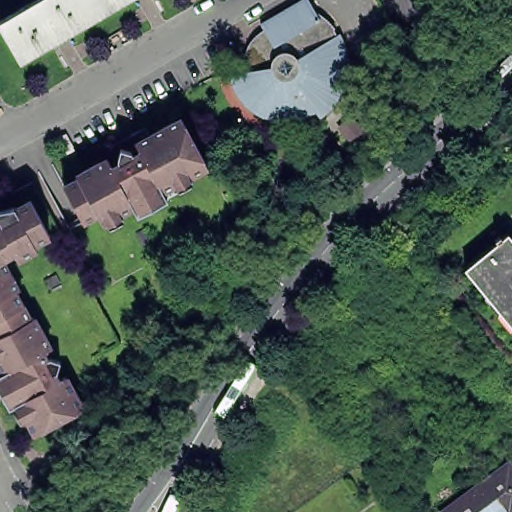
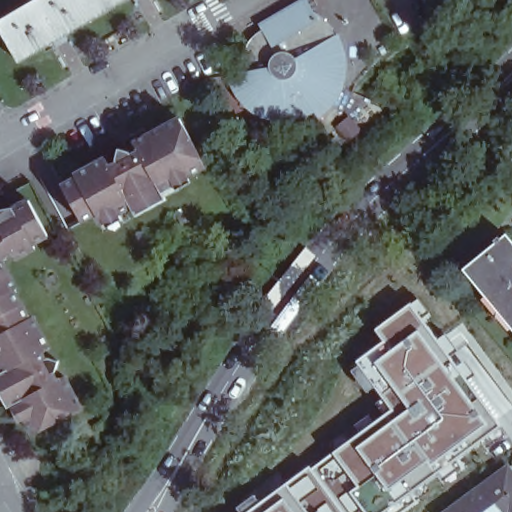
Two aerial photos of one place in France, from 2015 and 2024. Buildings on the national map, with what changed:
unchanged [(93,22),(70,35),(73,40),(61,47),(58,42),(23,62),(0,23),(40,0),(80,0),(93,22)]
unchanged [(93,22),(80,0),(130,0),(93,22)]
unchanged [(140,1),(140,0),(141,0),(140,1)]
unchanged [(319,12),(324,15),(328,18),(331,21),(335,25),(338,29),(331,33),(335,39),(342,35),(344,39),(346,44),(348,49),(350,59),(351,64),(351,70),(350,75),(349,80),(348,85),(346,90),(344,95),(341,99),(338,103),(335,107),(331,111),(327,114),(323,118),(319,111),(314,114),(311,116),(306,118),(301,119),(292,120),(288,120),(283,120),(273,118),(269,117),(264,115),(256,110),(249,104),(246,100),(238,88),(236,79),(234,75),(248,72),(247,68),(247,63),(248,58),(248,54),(251,49),(253,45),(264,52),(274,42),(264,25),(308,0),(312,0),(319,12)]
unchanged [(193,142),(206,166),(161,191),(166,200),(136,216),(131,207),(101,223),(96,214),(81,222),(63,187),(77,179),(75,175),(106,159),(111,168),(118,164),(115,160),(118,149),(133,141),(130,136),(144,128),(149,136),(180,119),(193,142)]
unchanged [(0,219),(0,218),(2,218),(0,214),(0,211),(18,207),(19,209),(34,200),(53,236),(38,244),(40,248),(21,259),(18,252),(5,258),(22,289),(18,291),(34,319),(38,317),(54,348),(46,352),(50,359),(53,358),(64,361),(60,372),(58,373),(61,380),(69,376),(83,401),(87,409),(39,435),(22,403),(6,373),(0,362),(0,231),(5,229),(0,219)]
unchanged [(512,333),(485,300),(463,274),(496,248),(494,245),(498,242),(500,244),(506,239),(512,246),(512,334),(512,333)]
new [(391,512),(234,512),(233,509),(251,497),(258,506),(388,408),(361,360),(383,342),(378,331),(414,305),(504,434),(391,512)]
unchanged [(502,473),(507,479),(512,486),(512,512),(449,512),(482,488),(502,473)]

